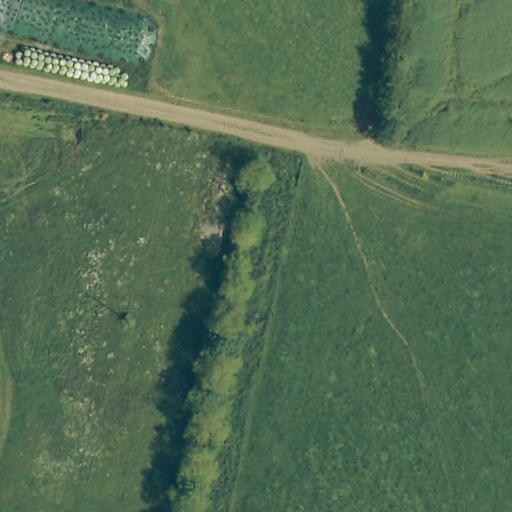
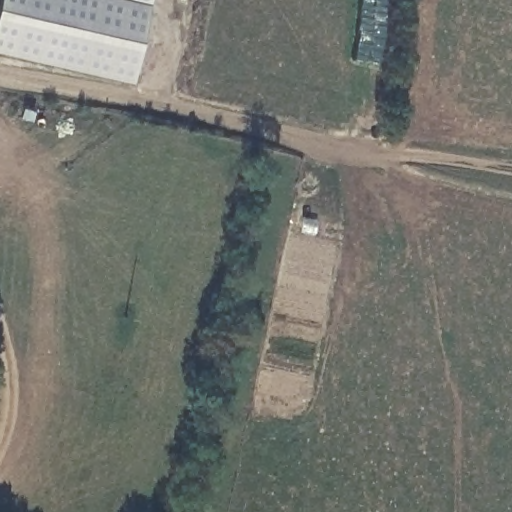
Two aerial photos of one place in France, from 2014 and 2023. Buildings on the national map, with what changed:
new [(129,83),(0,54),(0,0),(149,0),(129,83)]

